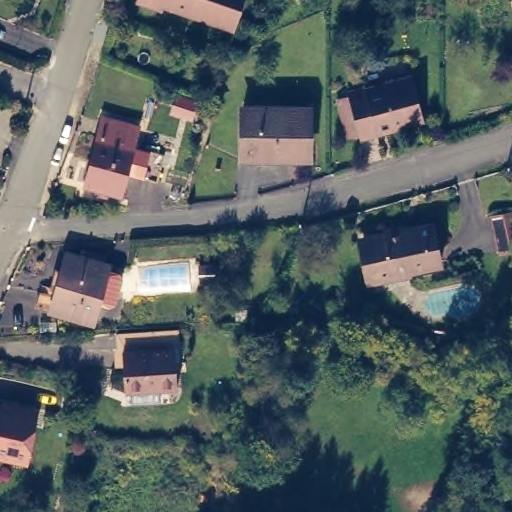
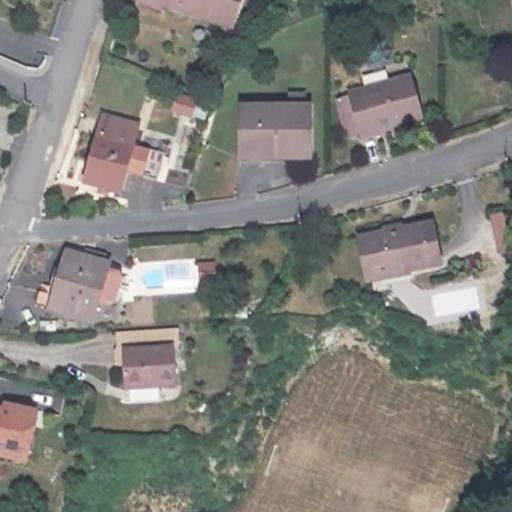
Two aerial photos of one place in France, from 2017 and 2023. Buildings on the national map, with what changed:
unchanged [(239,26),(203,15),(201,20),(166,9),(163,14),(144,7),(147,0),(247,0),(239,26)]
unchanged [(411,71),(424,120),(349,142),(331,90),(411,71)]
unchanged [(249,106),(316,107),(315,155),(248,154),(249,106)]
unchanged [(121,115),(113,145),(156,159),(148,186),(116,175),(109,195),(99,193),(98,200),(88,198),(91,190),(76,186),(89,141),(91,138),(99,109),(121,115)]
unchanged [(512,211),(512,247),(504,249),(498,214),(512,211)]
unchanged [(423,222),(432,263),(399,269),(396,268),(361,274),(353,235),(423,222)]
unchanged [(113,262),(98,320),(41,306),(46,290),(55,292),(62,270),(68,271),(73,252),(113,262)]
unchanged [(123,392),(120,360),(117,360),(116,343),(174,339),(176,356),(173,356),(174,395),(147,398),(123,399),(123,392)]
unchanged [(3,409),(18,411),(33,413),(38,414),(29,461),(11,459),(0,458),(0,413),(2,413),(3,409)]

